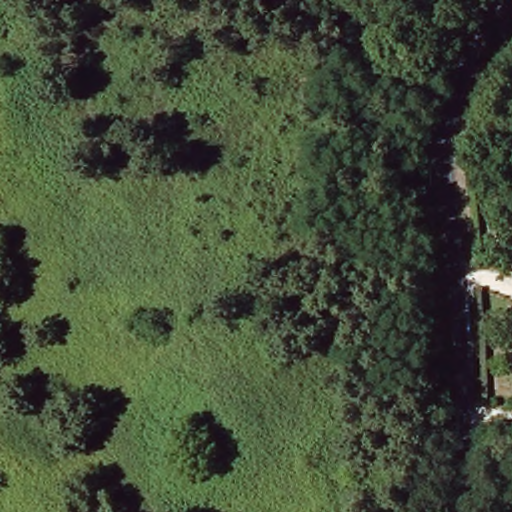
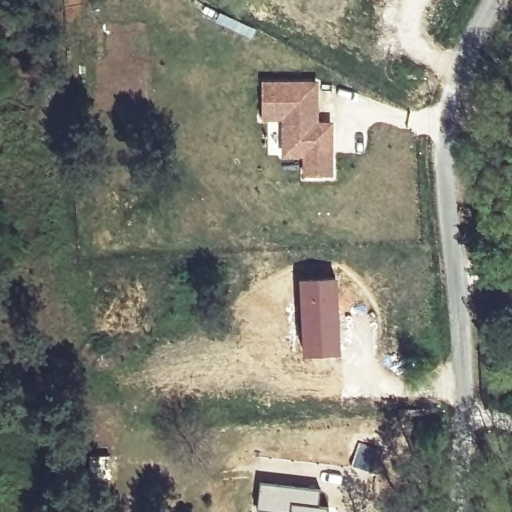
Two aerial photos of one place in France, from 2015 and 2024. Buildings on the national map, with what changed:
new [(261,81),(318,80),(319,121),(332,120),(333,175),(300,175),(299,157),(279,158),(277,121),(261,121),(261,81)]
new [(336,276),(341,353),(303,355),(298,278),(336,276)]
new [(320,489),(319,505),(291,502),(288,512),(271,512),(255,509),(259,482),(320,489)]
new [(319,505),(330,507),(330,512),(288,512),(291,502),(319,505)]

